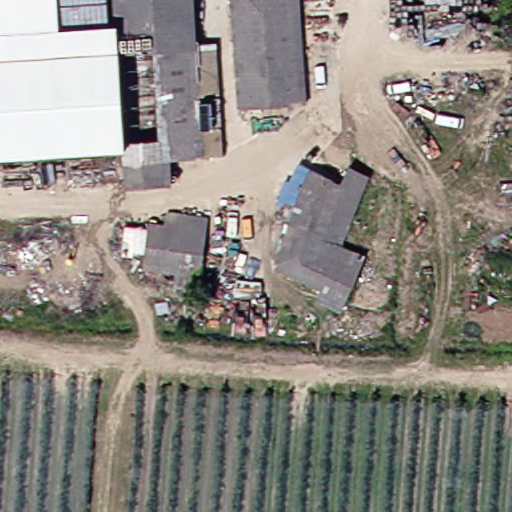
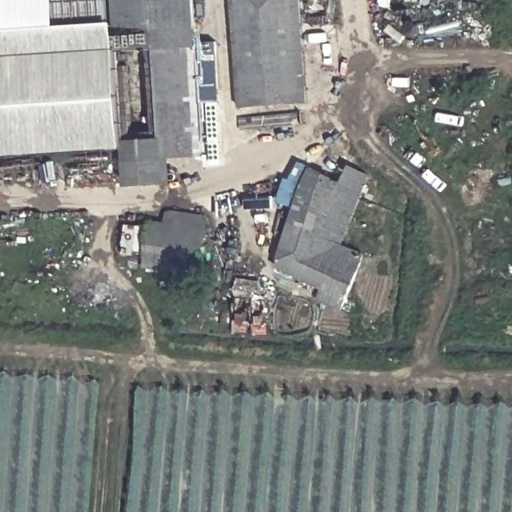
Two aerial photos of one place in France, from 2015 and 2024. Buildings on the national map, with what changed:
unchanged [(112,0),(124,155),(0,162),(0,0),(112,0)]
unchanged [(124,155),(112,0),(194,0),(196,25),(214,24),(220,125),(171,127),(172,153),(161,153),(124,155)]
unchanged [(297,0),(304,96),(259,100),(260,109),(242,110),(235,1),(254,0),(297,0)]
unchanged [(303,174),(335,186),(341,170),(362,179),(334,249),(354,257),(336,301),(265,270),(303,174)]
unchanged [(167,276),(134,271),(140,224),(156,225),(158,215),(199,220),(186,290),(165,292),(167,276)]

